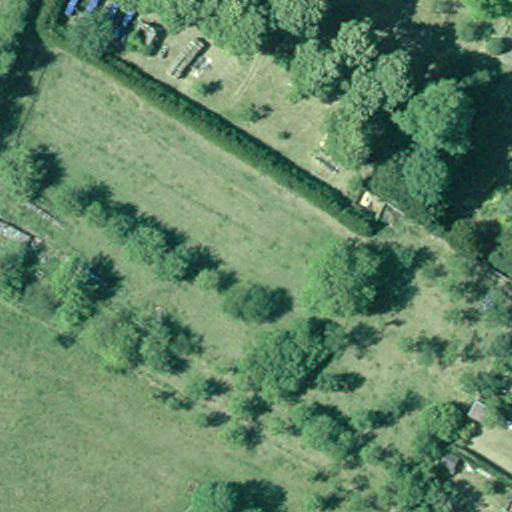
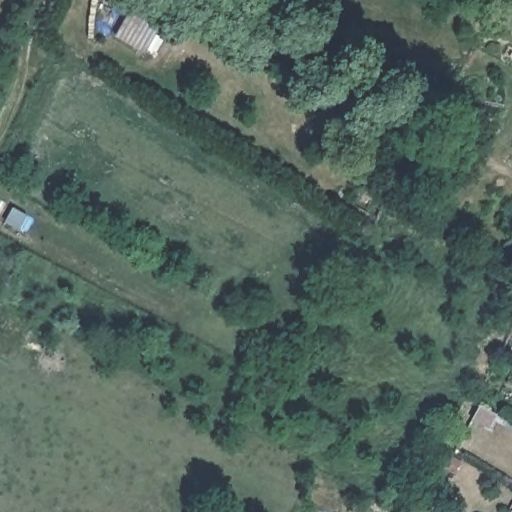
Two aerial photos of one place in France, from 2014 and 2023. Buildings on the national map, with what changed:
unchanged [(143,21),(158,29),(148,46),(133,38),(143,21)]
unchanged [(232,91),(235,84),(242,88),(238,94),(232,91)]
unchanged [(358,111),(352,119),(340,110),(346,103),(358,111)]
unchanged [(512,273),(512,275),(511,274),(512,273)]
unchanged [(481,403),(493,409),(486,422),(474,416),(481,403)]

